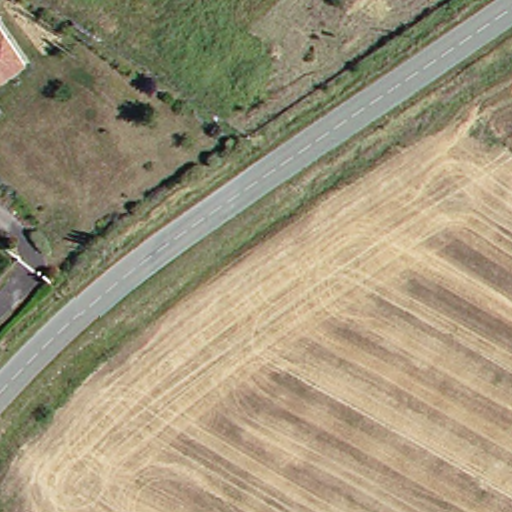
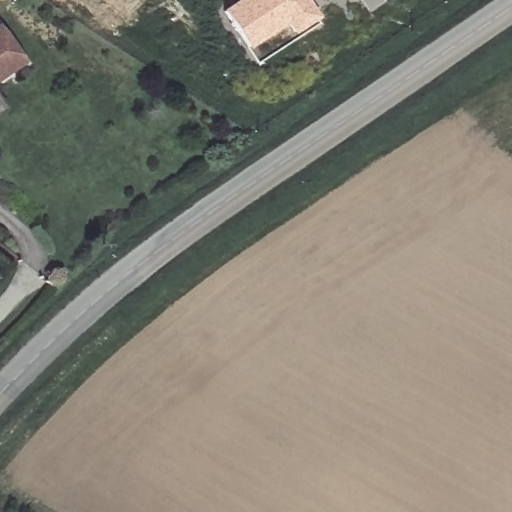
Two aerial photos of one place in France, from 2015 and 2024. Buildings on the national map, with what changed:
new [(293,35),(286,25),(246,49),(221,10),(237,0),(308,0),(319,17),(293,35)]
unchanged [(0,77),(0,28),(24,63),(0,77)]

